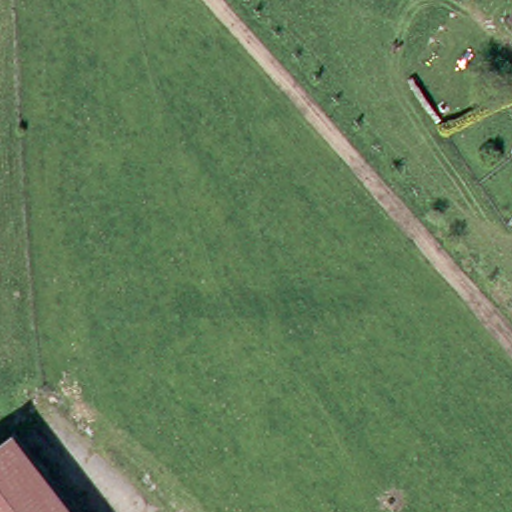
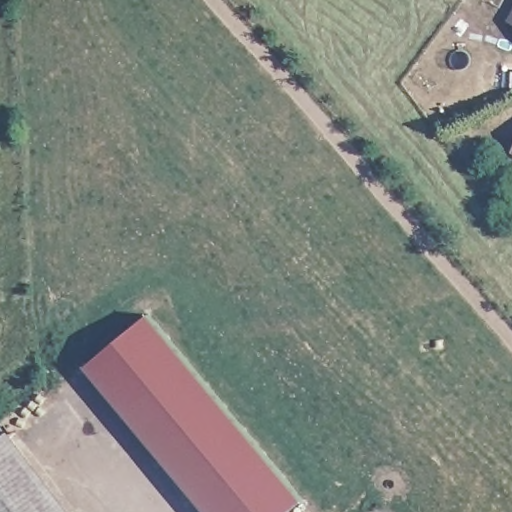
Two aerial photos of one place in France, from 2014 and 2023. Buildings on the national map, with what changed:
unchanged [(510,14),(512,12),(512,15),(510,14)]
new [(162,315),(312,502),(300,512),(213,512),(97,367),(162,315)]
unchanged [(0,439),(15,428),(77,512),(0,512),(0,439)]

